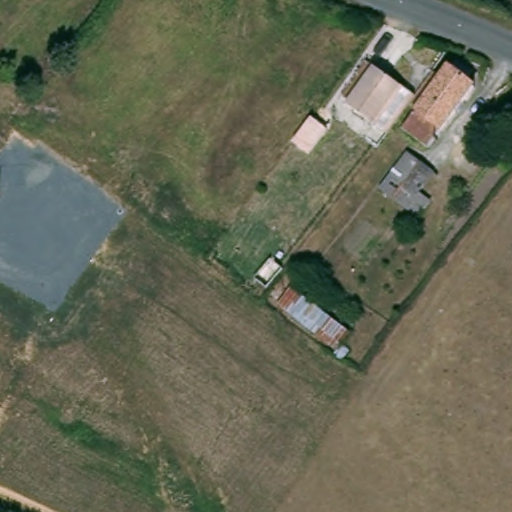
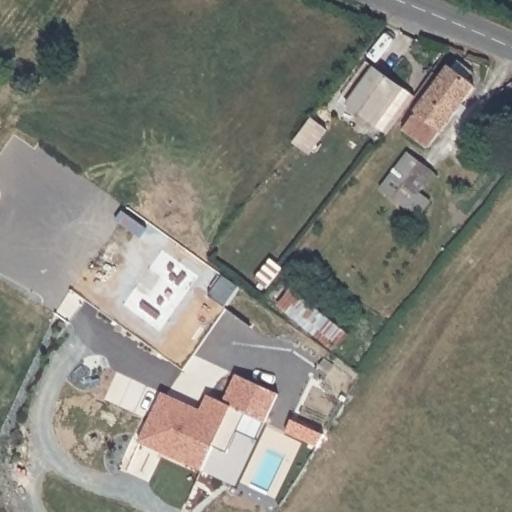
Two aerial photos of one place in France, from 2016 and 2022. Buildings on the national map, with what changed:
unchanged [(376,122),(348,102),(377,63),(403,81),(376,122)]
unchanged [(431,145),(406,126),(450,63),(483,84),(431,145)]
unchanged [(425,188),(435,196),(421,211),(381,187),(407,149),(438,171),(425,188)]
unchanged [(290,277),(363,329),(348,346),(276,295),(290,277)]
new [(139,442),(161,393),(200,410),(207,395),(222,402),(235,375),(277,395),(265,423),(245,413),(227,453),(213,446),(202,471),(139,442)]

